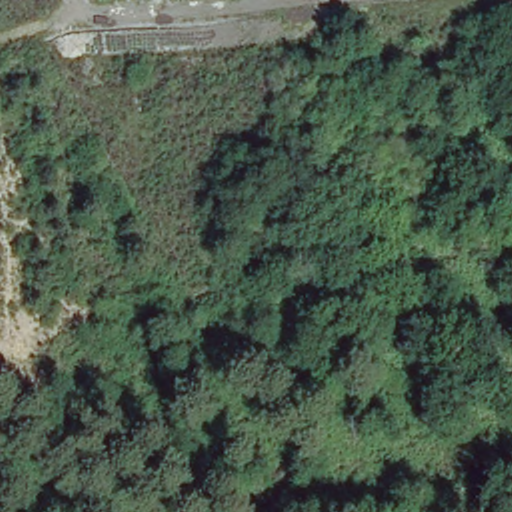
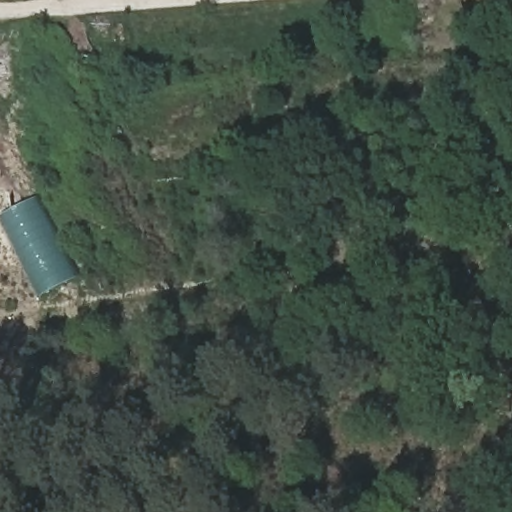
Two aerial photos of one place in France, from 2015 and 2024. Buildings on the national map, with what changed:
new [(39,296),(0,217),(0,216),(37,197),(78,277),(39,296)]

